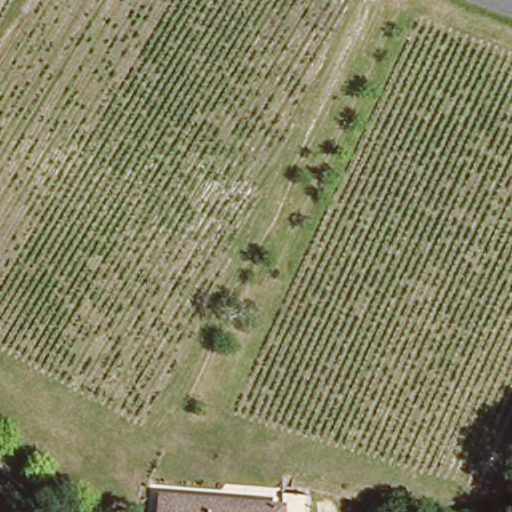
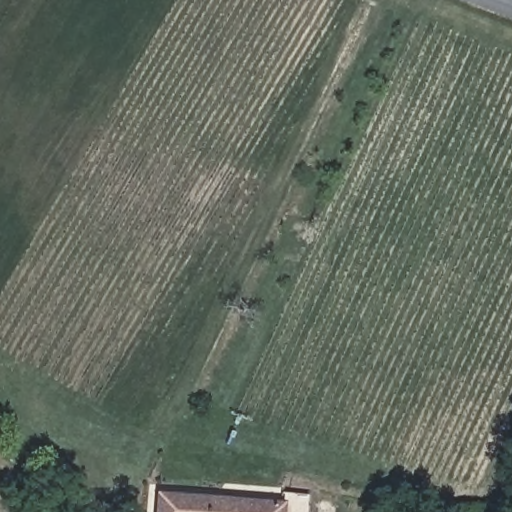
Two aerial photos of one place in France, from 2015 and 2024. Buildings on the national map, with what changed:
unchanged [(213,504),(281,510),(281,512),(155,512),(157,495),(213,504)]

